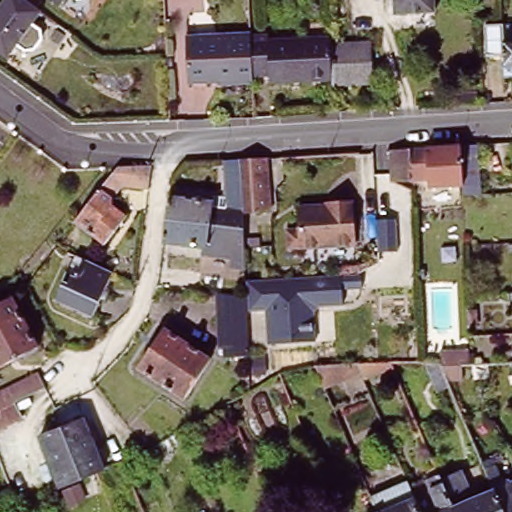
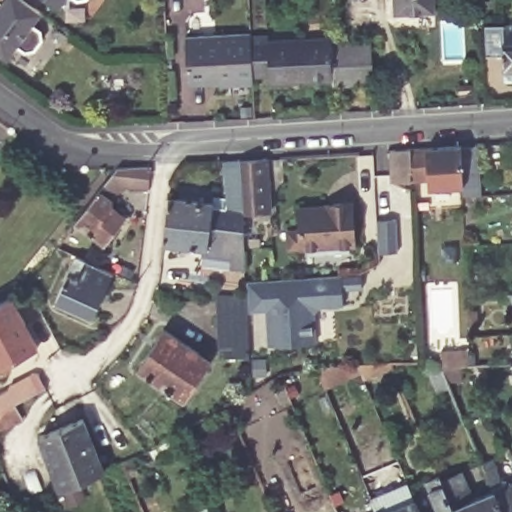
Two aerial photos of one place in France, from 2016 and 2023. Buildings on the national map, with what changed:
unchanged [(30,25),(39,31),(42,40),(33,51),(24,52),(15,47),(6,59),(0,55),(0,2),(2,0),(25,0),(40,11),(30,25)]
unchanged [(392,0),(433,0),(434,15),(393,16),(392,0)]
unchanged [(252,79),(220,81),(220,77),(189,79),(185,32),(249,29),(249,32),(252,72),(252,79)]
unchanged [(335,75),(268,80),(267,71),(252,72),(249,32),(265,31),(267,39),(334,36),(334,39),(335,75)]
unchanged [(353,37),(370,35),(374,82),(335,85),(335,82),(336,82),(335,75),(334,39),(353,37)]
unchanged [(500,39),(512,38),(512,61),(502,61),(500,39)]
unchanged [(388,187),(385,150),(405,150),(455,146),(470,145),(472,184),(457,185),(422,187),(422,169),(405,170),(407,186),(388,187)]
unchanged [(168,199),(212,205),(212,209),(227,210),(224,161),(238,160),(264,159),(267,210),(242,212),(244,230),(165,221),(166,214),(168,199)]
unchanged [(141,194),(117,190),(105,205),(107,211),(120,222),(100,247),(70,225),(112,172),(144,170),(141,194)]
unchanged [(295,248),(293,231),(305,230),(304,209),(332,207),(332,204),(355,203),(357,245),(295,248)]
unchanged [(244,230),(245,246),(246,258),(245,269),(230,266),(232,257),(205,252),(207,248),(162,242),(165,221),(244,230)]
unchanged [(107,273),(85,317),(49,298),(70,255),(107,273)]
unchanged [(245,297),(245,281),(340,276),(342,306),(319,307),(313,314),(315,342),(266,345),(265,311),(246,310),(245,297)]
unchanged [(245,297),(249,355),(224,355),(223,349),(218,350),(214,295),(245,297)]
unchanged [(37,352),(0,373),(0,308),(10,302),(37,352)]
unchanged [(185,397),(138,368),(161,330),(208,358),(185,397)]
unchanged [(437,392),(425,363),(439,363),(440,363),(440,348),(469,348),(470,364),(487,365),(487,380),(445,379),(450,388),(437,392)]
unchanged [(344,373),(320,383),(314,367),(316,366),(315,352),(353,351),(355,363),(382,362),(389,362),(392,371),(362,378),(360,373),(346,378),(344,373)]
unchanged [(34,373),(40,387),(10,403),(16,416),(1,425),(0,426),(0,391),(34,373)]
unchanged [(60,495),(38,441),(81,424),(104,477),(96,480),(60,495)]
unchanged [(161,443),(177,433),(181,443),(154,458),(150,449),(161,443)]
unchanged [(482,468),(492,464),(499,478),(499,483),(506,485),(508,489),(512,488),(512,512),(499,512),(492,495),(482,468)]
unchanged [(424,484),(436,478),(440,486),(451,512),(436,512),(424,484)]
unchanged [(440,486),(459,478),(470,504),(492,495),(499,512),(451,512),(440,486)]
unchanged [(370,502),(405,487),(416,512),(374,512),(370,502)]

